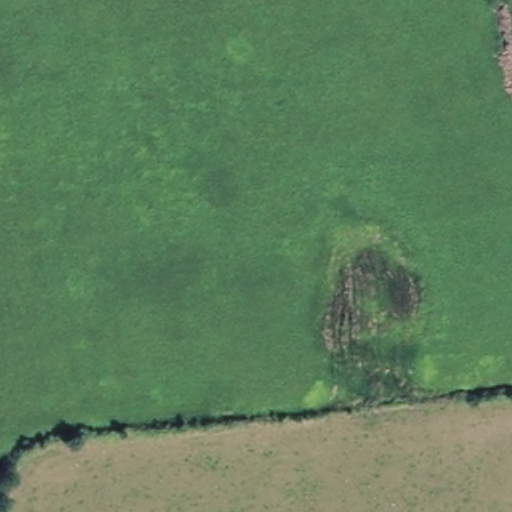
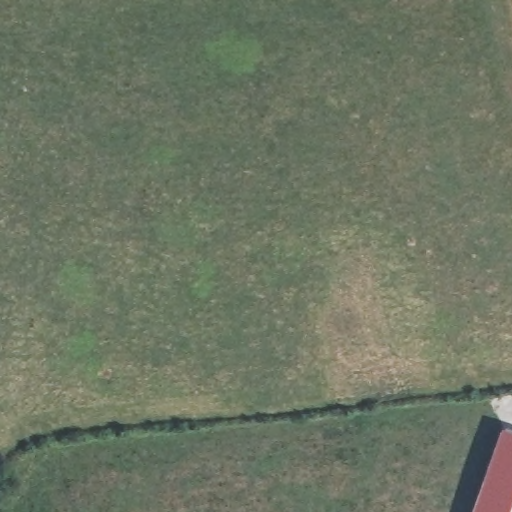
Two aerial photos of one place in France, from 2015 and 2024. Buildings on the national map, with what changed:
new [(512,430),(512,512),(472,512),(503,427),(512,430)]

